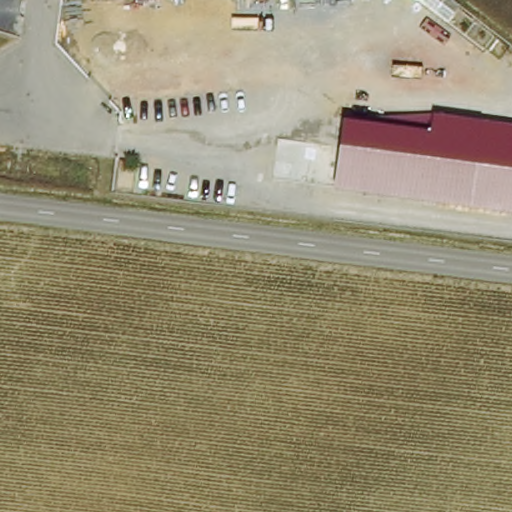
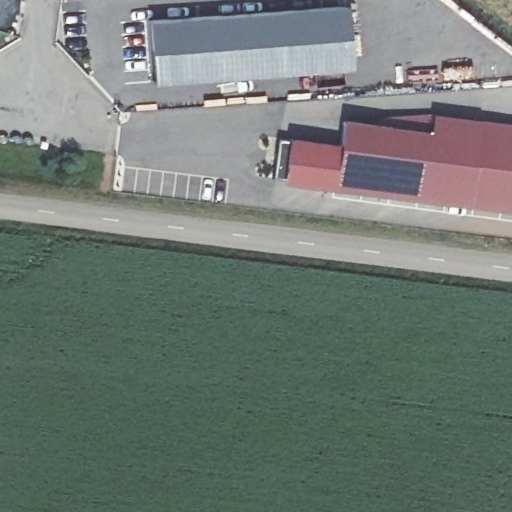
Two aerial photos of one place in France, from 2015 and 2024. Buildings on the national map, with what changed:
new [(346,5),(354,66),(153,84),(148,21),(346,5)]
unchanged [(341,128),(430,139),(432,122),(512,132),(512,215),(334,194),(341,128)]
new [(288,136),(339,145),(334,187),(283,180),(288,136)]

